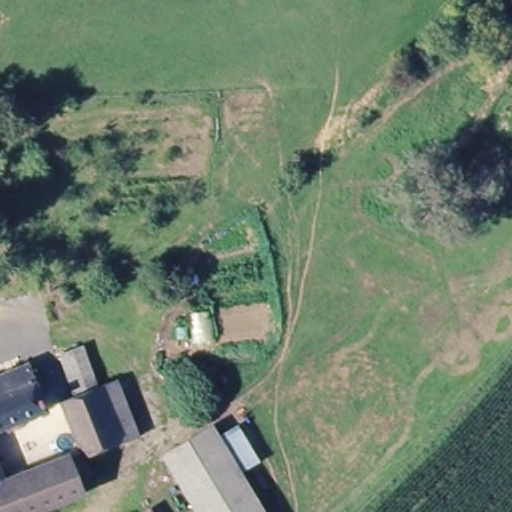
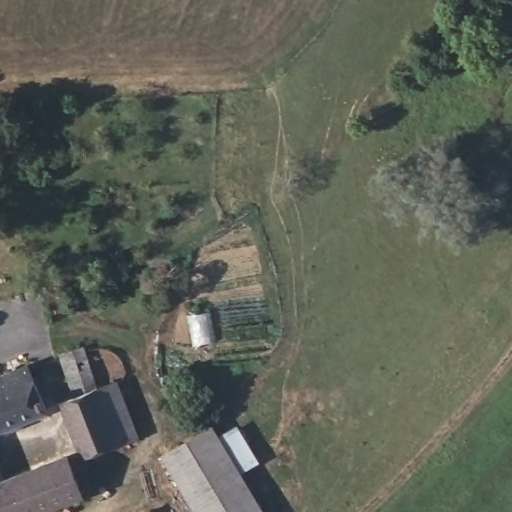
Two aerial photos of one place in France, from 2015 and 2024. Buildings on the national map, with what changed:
unchanged [(34,361),(54,406),(0,432),(0,374),(25,364),(34,361)]
unchanged [(98,458),(93,452),(74,401),(95,391),(87,372),(101,367),(110,389),(130,382),(152,437),(98,458)]
unchanged [(257,512),(191,512),(172,447),(233,428),(253,422),(258,441),(267,477),(248,482),(257,512)]
unchanged [(79,462),(93,503),(63,512),(0,512),(0,474),(4,486),(79,462)]

